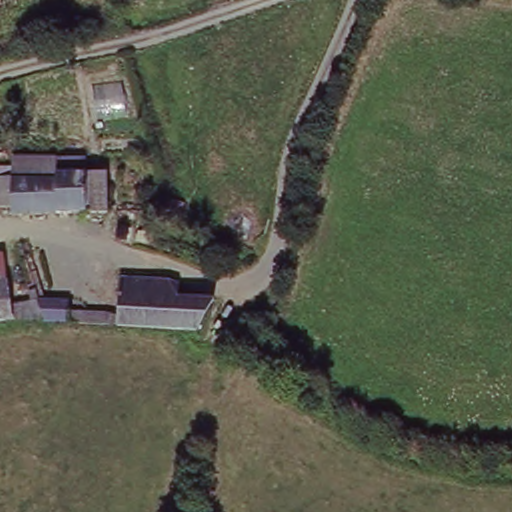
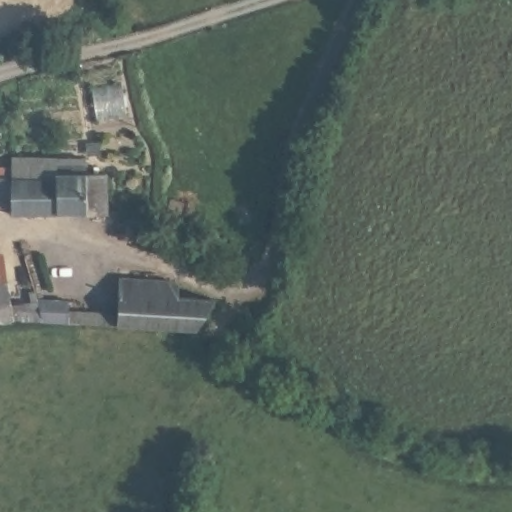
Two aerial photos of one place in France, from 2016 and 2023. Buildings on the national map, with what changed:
unchanged [(55,211),(11,207),(10,202),(0,202),(0,176),(9,177),(8,155),(59,156),(91,157),(90,179),(110,180),(110,214),(89,213),(85,213),(55,211)]
unchanged [(44,281),(33,249),(44,246),(53,267),(58,284),(63,300),(81,302),(79,308),(95,312),(93,325),(54,319),(41,317),(29,318),(29,306),(50,303),(44,281)]
unchanged [(10,278),(0,279),(0,261),(8,261),(10,278)]
unchanged [(110,324),(118,276),(179,286),(175,302),(208,309),(188,339),(110,324)]
unchanged [(15,318),(4,320),(0,320),(0,279),(10,278),(15,318)]

